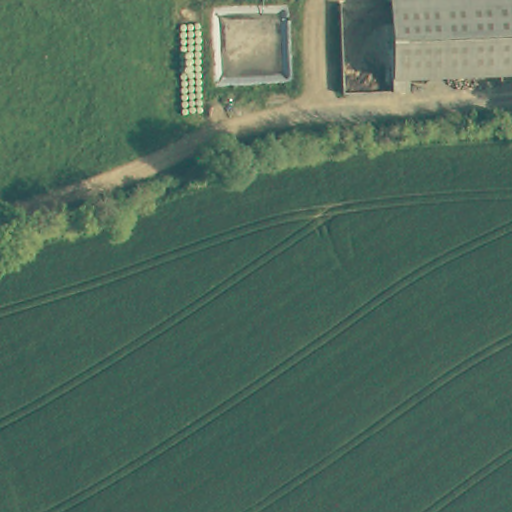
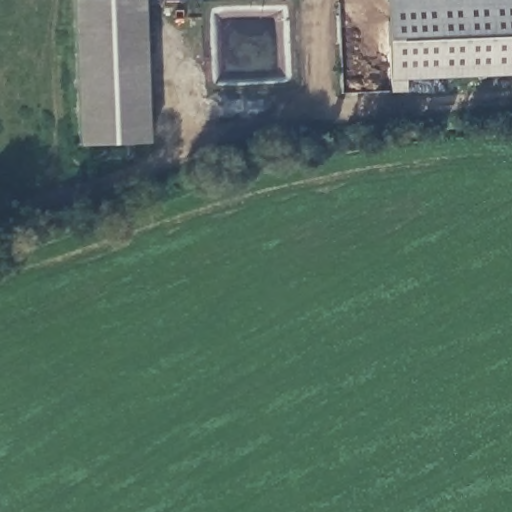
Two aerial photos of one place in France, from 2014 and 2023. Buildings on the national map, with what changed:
new [(150,141),(80,144),(74,0),(145,0),(150,141)]
unchanged [(390,81),(386,0),(512,0),(512,75),(390,81)]

